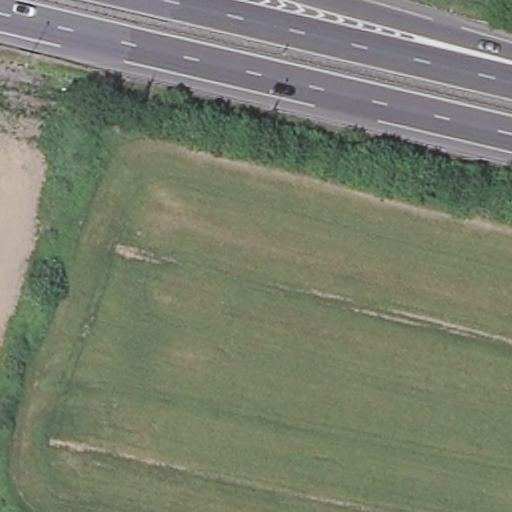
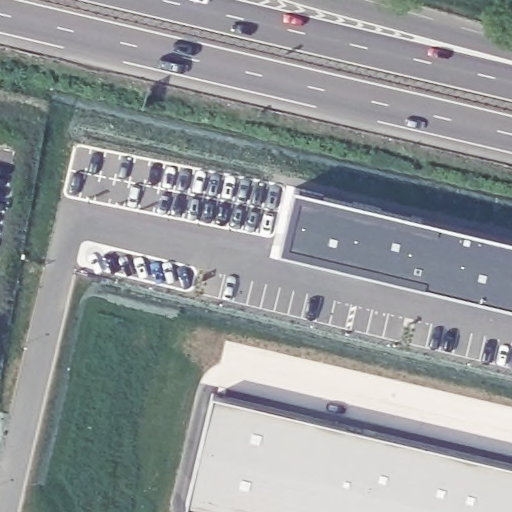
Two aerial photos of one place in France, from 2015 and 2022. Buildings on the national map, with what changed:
new [(512,238),(512,305),(286,250),(302,189),(512,238)]
new [(512,467),(512,512),(209,512),(192,508),(215,396),(512,467)]

